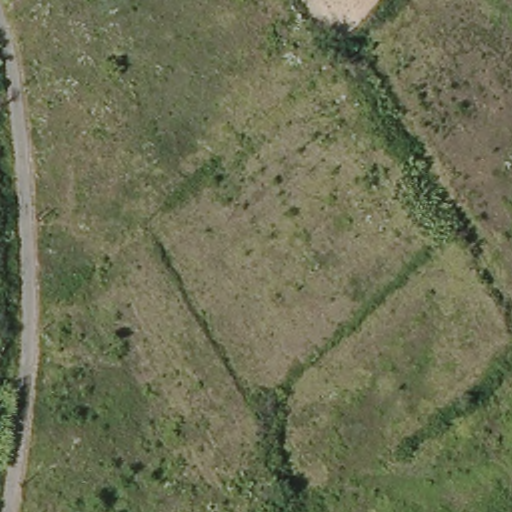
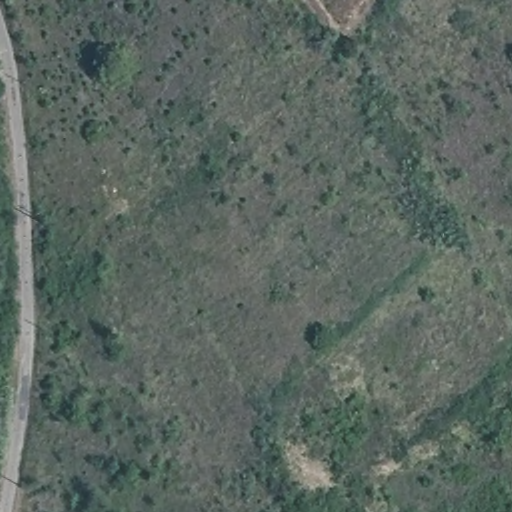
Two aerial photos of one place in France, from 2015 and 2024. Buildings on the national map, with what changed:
[]

